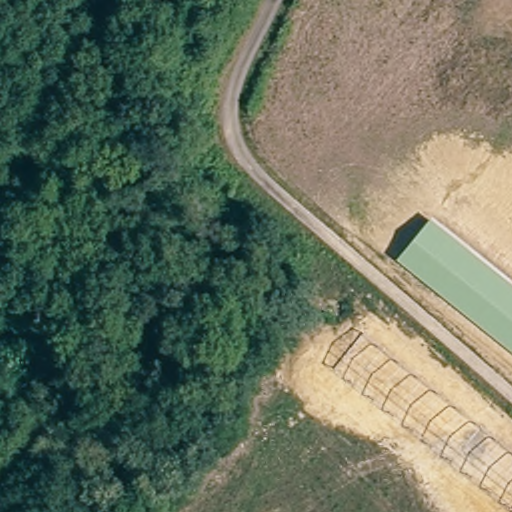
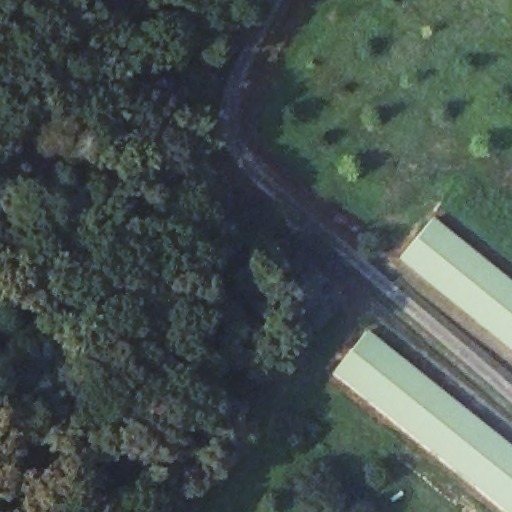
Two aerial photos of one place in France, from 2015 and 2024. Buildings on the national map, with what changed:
unchanged [(397,258),(430,218),(512,284),(512,351),(397,258)]
new [(507,512),(333,373),(367,333),(512,448),(512,512),(507,512)]

